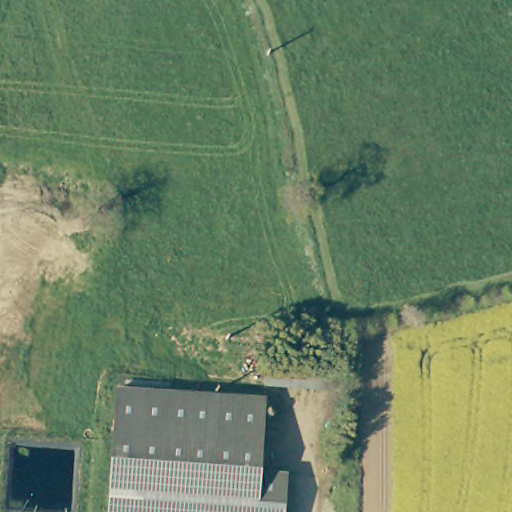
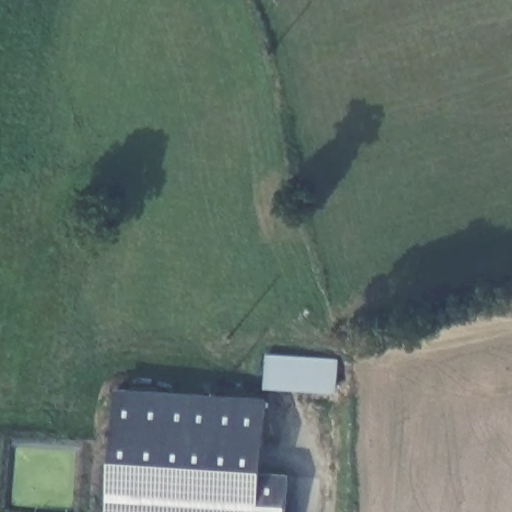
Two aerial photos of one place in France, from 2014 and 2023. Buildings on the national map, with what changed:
new [(265,355),(335,359),(333,394),(262,389),(265,355)]
demolished [(339,361),(336,384),(268,381),(272,356),(339,361)]
unchanged [(121,388),(261,396),(264,471),(285,477),(288,512),(287,512),(115,512),(121,388)]

